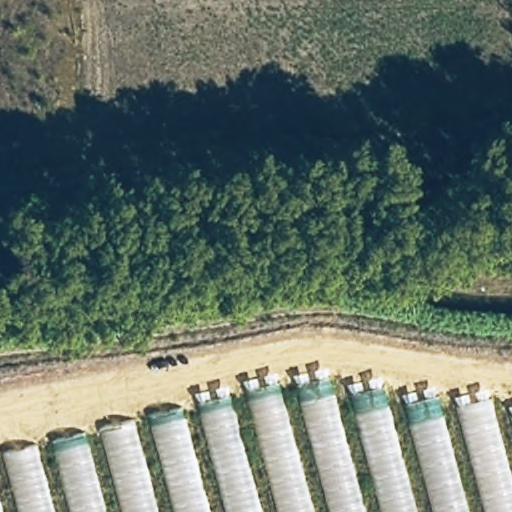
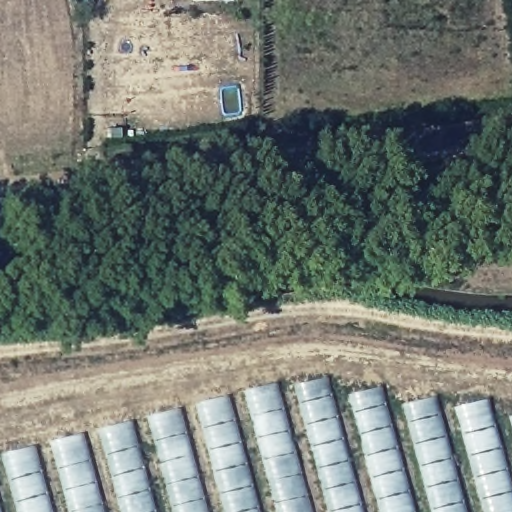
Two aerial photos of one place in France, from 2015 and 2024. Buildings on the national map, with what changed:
unchanged [(329,380),(349,397),(383,387),(402,405),(438,395),(455,410),(489,395),(509,418),(512,418),(512,512),(0,512),(0,457),(276,383),(329,380)]

